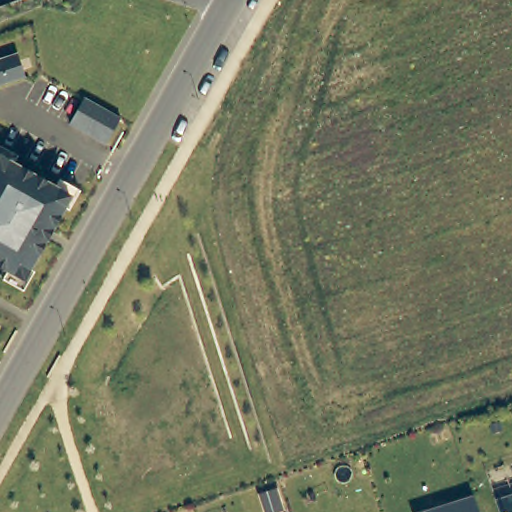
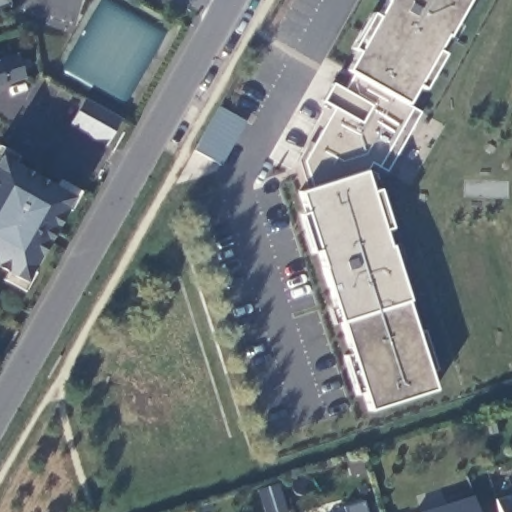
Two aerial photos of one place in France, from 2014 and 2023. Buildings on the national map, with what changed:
new [(0,0),(9,0),(10,4),(0,7),(0,0)]
new [(421,112),(387,174),(369,164),(364,170),(387,247),(391,244),(436,388),(369,411),(300,193),(309,190),(301,163),(332,107),(322,102),(334,82),(346,90),(356,75),(347,70),(387,0),(466,0),(409,102),(421,112)]
unchanged [(0,58),(17,53),(24,77),(0,84),(0,58)]
unchanged [(122,117),(107,144),(71,123),(86,97),(122,117)]
new [(222,165),(190,149),(216,105),(248,122),(222,165)]
unchanged [(3,280),(8,271),(0,267),(0,146),(18,157),(13,165),(45,184),(54,189),(59,180),(80,192),(69,211),(64,207),(29,269),(34,272),(24,291),(3,280)]
unchanged [(495,499),(512,494),(512,512),(499,512),(495,499)]
unchanged [(478,512),(423,512),(474,497),(478,512)]

